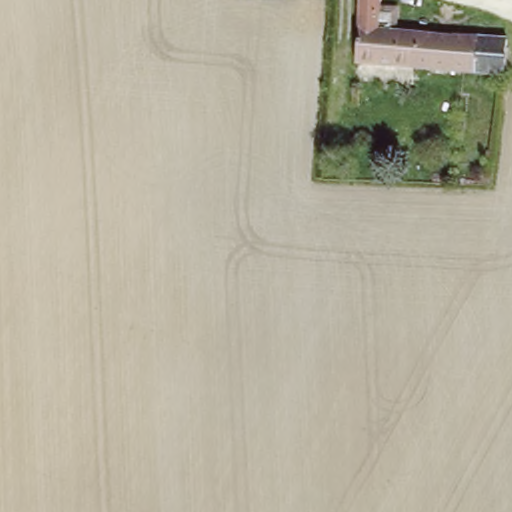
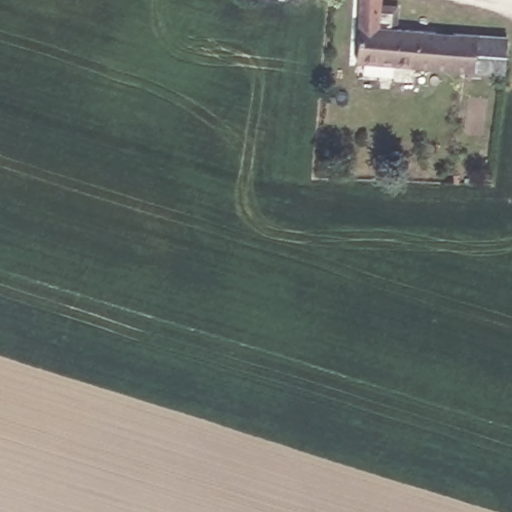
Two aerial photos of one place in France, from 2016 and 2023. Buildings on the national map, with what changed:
unchanged [(381,0),(380,12),(392,13),(391,28),(508,38),(506,72),(357,62),(360,0),(381,0)]

